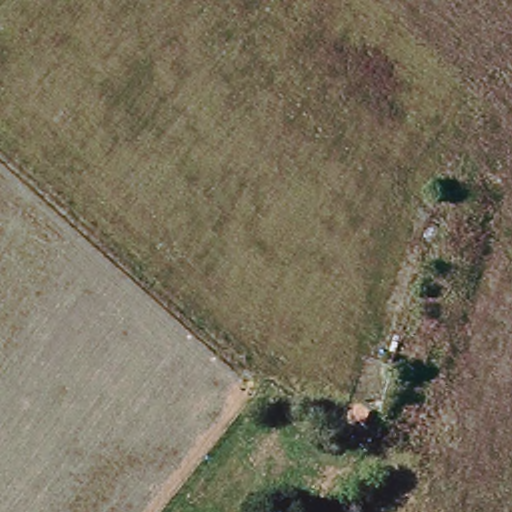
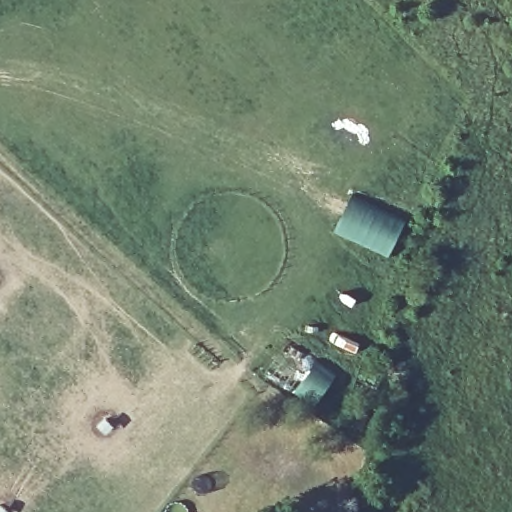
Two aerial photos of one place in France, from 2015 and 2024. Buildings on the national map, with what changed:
new [(336,227),(346,206),(361,214),(366,204),(404,222),(388,254),(361,241),(364,235),(336,227)]

